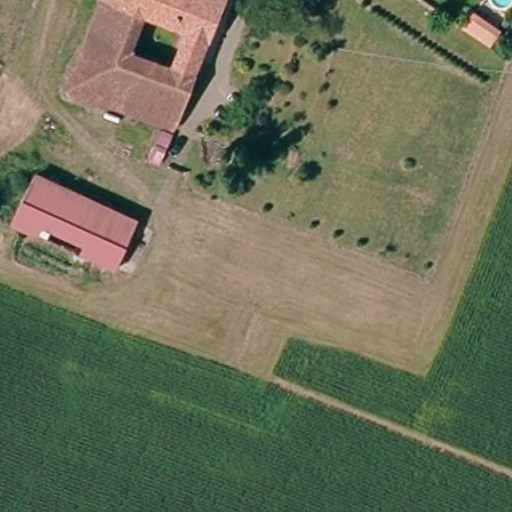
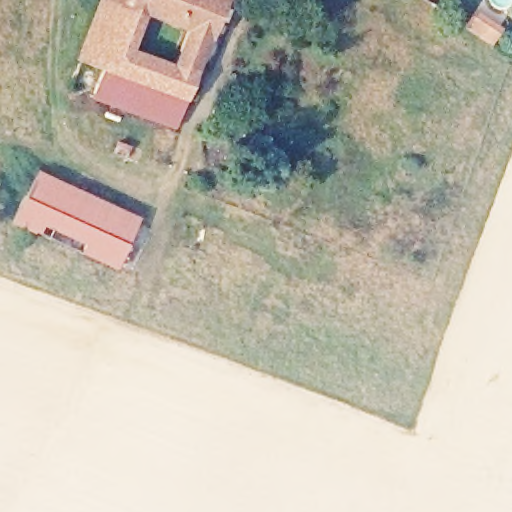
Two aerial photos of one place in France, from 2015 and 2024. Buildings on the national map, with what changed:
unchanged [(165,123),(76,93),(62,88),(94,0),(203,0),(188,53),(181,74),(165,123)]
unchanged [(464,32),(474,16),(500,33),(490,49),(464,32)]
unchanged [(97,198),(82,251),(14,226),(32,173),(97,198)]
unchanged [(135,210),(119,263),(82,251),(97,198),(135,210)]

